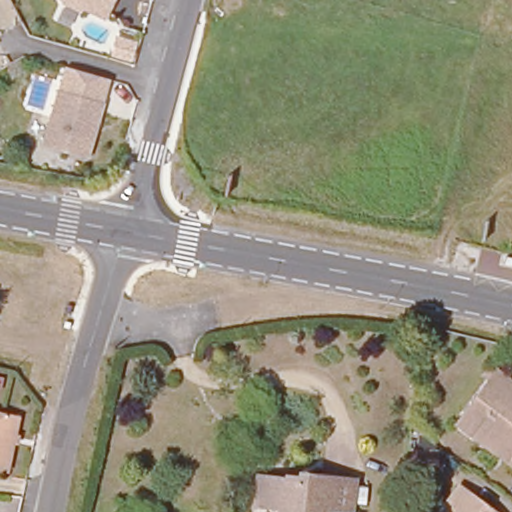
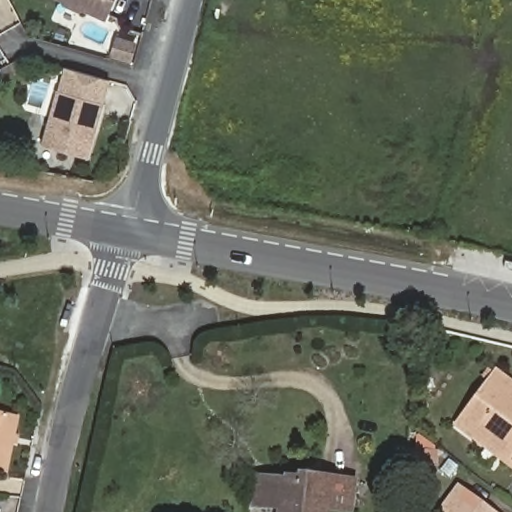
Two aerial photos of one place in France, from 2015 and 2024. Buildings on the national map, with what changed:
unchanged [(116,11),(110,23),(89,13),(85,14),(70,8),(69,4),(60,0),(117,0),(115,7),(116,11)]
unchanged [(118,40),(135,45),(131,60),(114,55),(118,40)]
unchanged [(104,93),(89,148),(43,135),(58,80),(104,93)]
unchanged [(497,372),(512,384),(512,467),(457,425),(497,372)]
unchanged [(0,481),(0,422),(24,426),(11,483),(0,481)]
unchanged [(437,466),(417,466),(417,452),(438,452),(437,466)]
unchanged [(254,507),(258,476),(298,481),(299,474),(356,480),(352,512),(337,512),(327,511),(326,512),(278,512),(279,510),(254,507)]
unchanged [(458,488),(490,512),(440,512),(458,488)]

